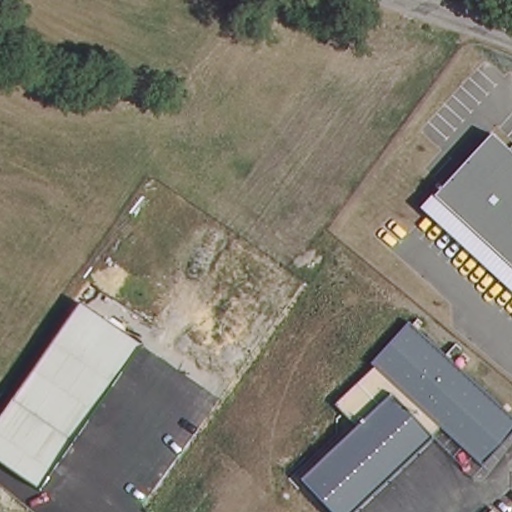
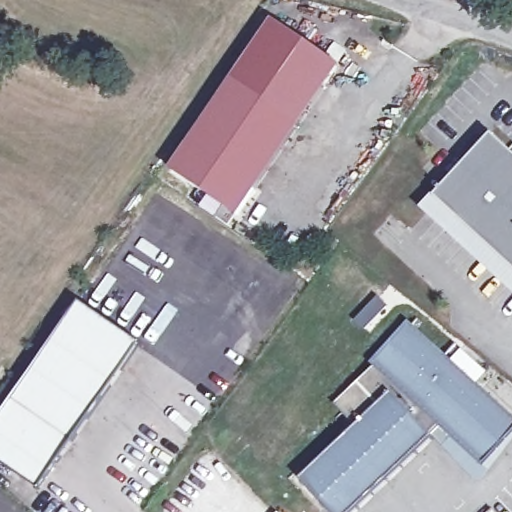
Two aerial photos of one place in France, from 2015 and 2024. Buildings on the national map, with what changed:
new [(272,19),(340,65),(296,128),(229,82),(272,19)]
new [(229,82),(296,128),(237,215),(170,169),(229,82)]
unchanged [(422,210),(435,199),(491,135),(512,153),(512,295),(422,210)]
unchanged [(40,489),(0,463),(0,420),(80,304),(140,345),(40,489)]
unchanged [(356,427),(335,406),(375,368),(371,365),(409,323),(512,418),(512,432),(480,465),(440,427),(432,436),(352,512),(332,512),(300,480),(356,427)]

